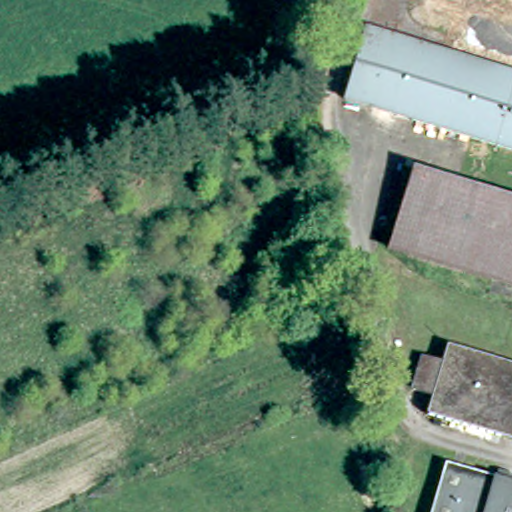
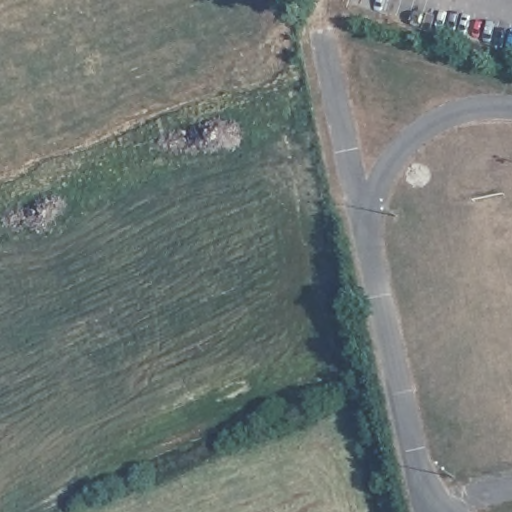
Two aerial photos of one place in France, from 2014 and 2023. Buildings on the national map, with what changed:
demolished [(362,25),(512,71),(512,149),(341,96),(362,25)]
demolished [(381,238),(403,168),(512,201),(512,278),(381,238)]
demolished [(414,385),(392,378),(401,349),(422,355),(429,335),(512,361),(512,436),(407,404),(414,385)]
demolished [(428,512),(443,462),(495,478),(497,467),(512,472),(512,512),(428,512)]

